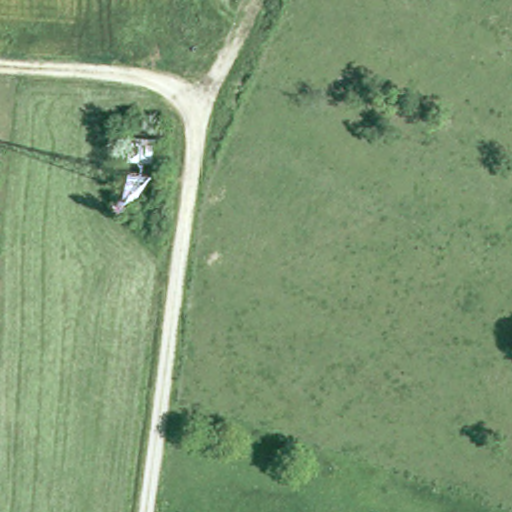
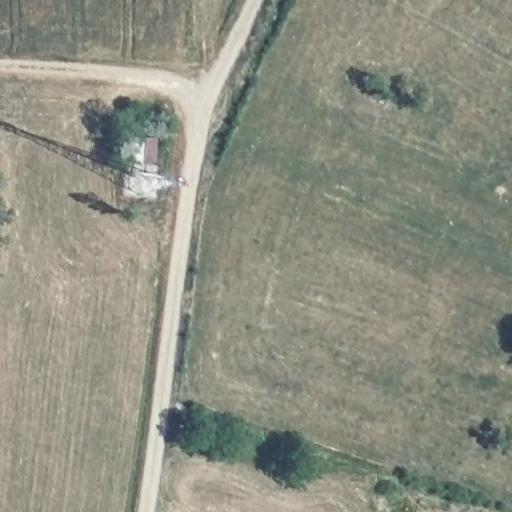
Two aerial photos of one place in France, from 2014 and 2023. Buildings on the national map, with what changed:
unchanged [(128,160),(130,136),(156,138),(154,162),(128,160)]

